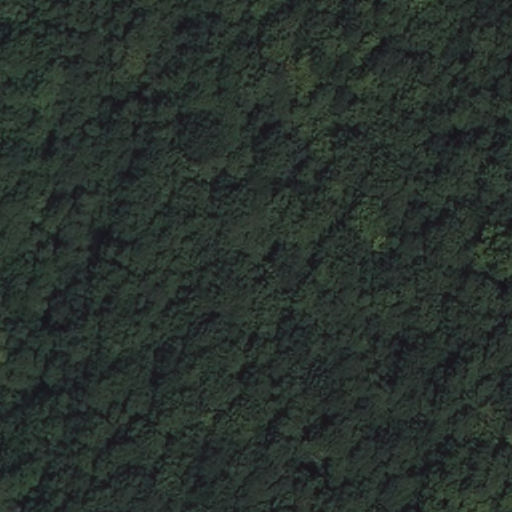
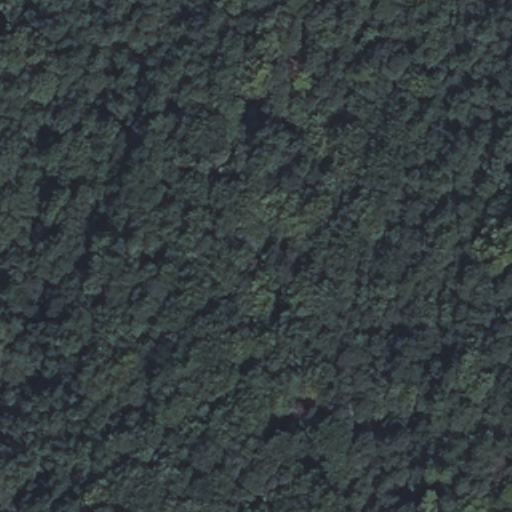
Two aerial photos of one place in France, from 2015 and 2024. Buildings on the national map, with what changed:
[]

